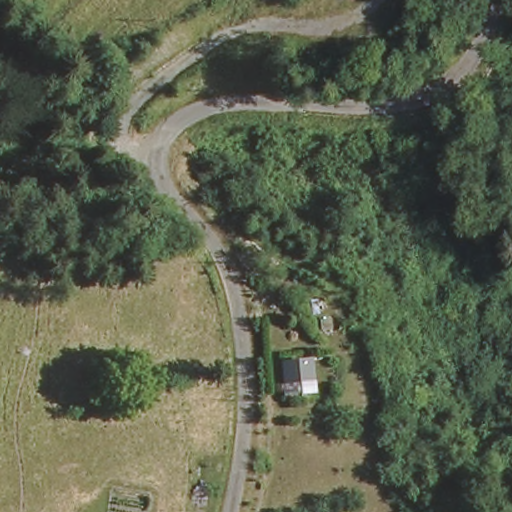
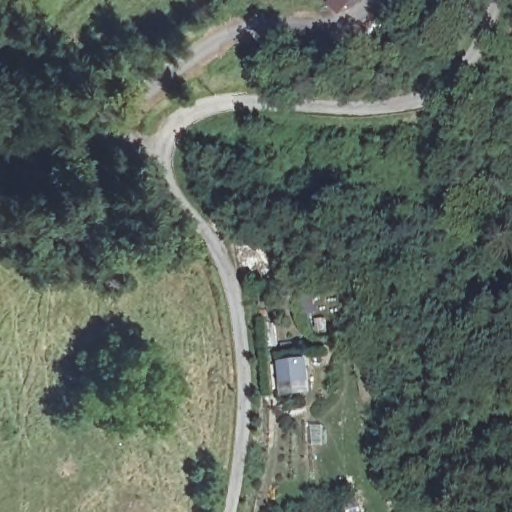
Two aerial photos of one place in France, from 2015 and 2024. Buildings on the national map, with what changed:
unchanged [(311,361),(318,397),(286,400),(282,365),(311,361)]

